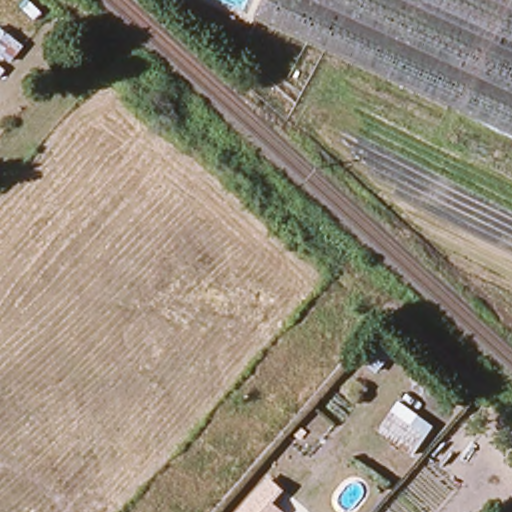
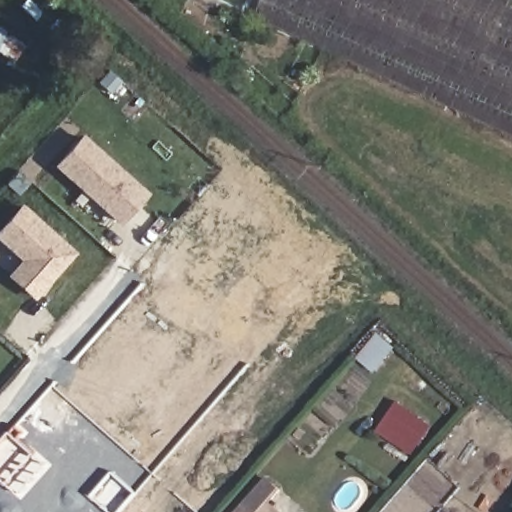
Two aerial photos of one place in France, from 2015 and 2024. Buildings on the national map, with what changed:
unchanged [(253,20),(263,0),(512,0),(512,141),(253,20)]
unchanged [(23,51),(11,68),(0,60),(0,46),(6,39),(23,51)]
new [(82,136),(145,192),(120,220),(58,164),(82,136)]
new [(72,253),(32,295),(9,274),(24,258),(0,236),(0,230),(22,206),(72,253)]
unchanged [(414,457),(377,433),(396,400),(436,428),(414,457)]
new [(34,454),(6,485),(0,479),(0,443),(10,432),(34,454)]
unchanged [(275,506),(282,512),(240,512),(268,478),(285,492),(275,506)]

